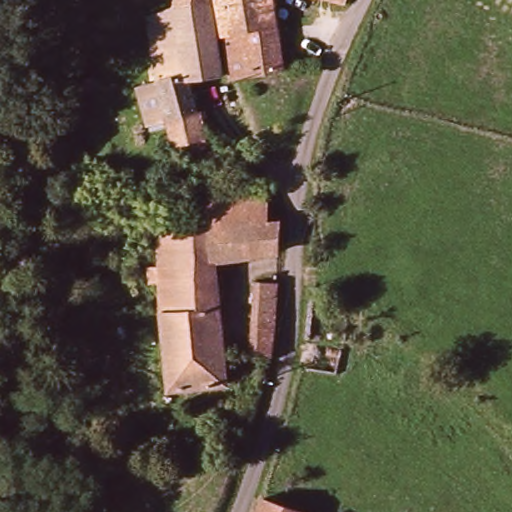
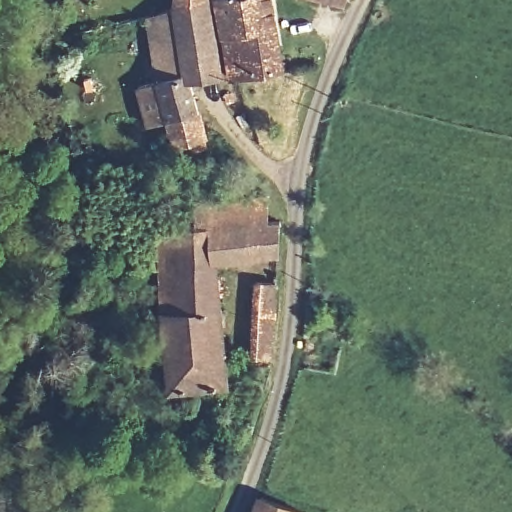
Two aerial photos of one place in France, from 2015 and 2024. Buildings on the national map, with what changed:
unchanged [(199,114),(169,121),(154,125),(147,126),(139,89),(163,81),(147,18),(174,5),(175,0),(209,0),(225,77),(190,83),(199,114)]
unchanged [(234,79),(214,0),(274,0),(290,68),(234,79)]
unchanged [(205,131),(211,152),(199,154),(196,147),(178,148),(169,121),(199,114),(205,131)]
unchanged [(198,205),(263,197),(268,225),(204,233),(198,205)]
unchanged [(275,257),(218,261),(225,382),(169,389),(164,326),(162,245),(183,245),(180,237),(204,233),(268,225),(278,225),(275,257)]
unchanged [(275,329),(272,352),(250,352),(248,324),(255,324),(255,289),(257,282),(270,283),(271,290),(273,309),(275,329)]
unchanged [(305,511),(305,512),(259,512),(263,498),(305,511)]

